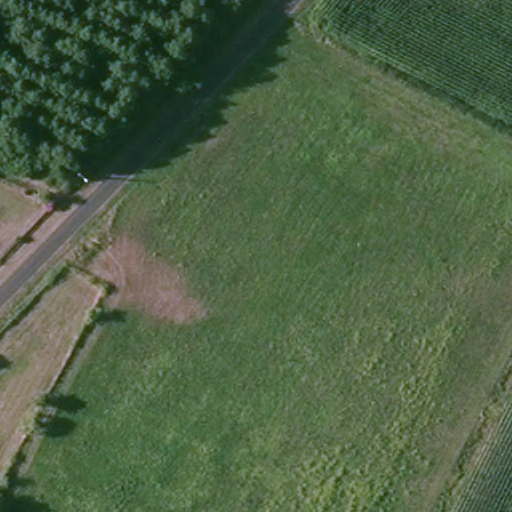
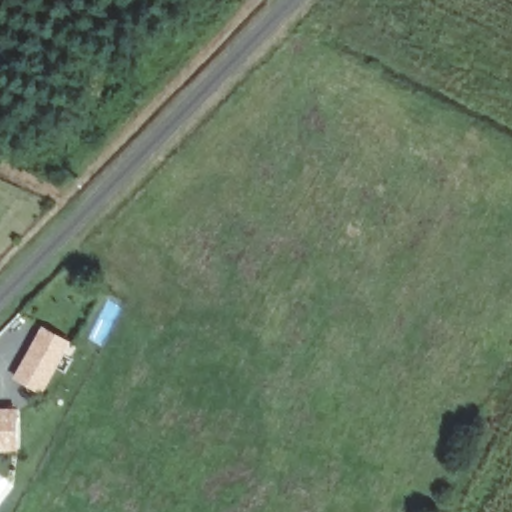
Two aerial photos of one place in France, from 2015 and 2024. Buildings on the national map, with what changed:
new [(45,326),(70,340),(61,357),(44,390),(18,377),(35,344),(45,326)]
new [(12,466),(0,458),(0,421),(14,427),(12,466)]

